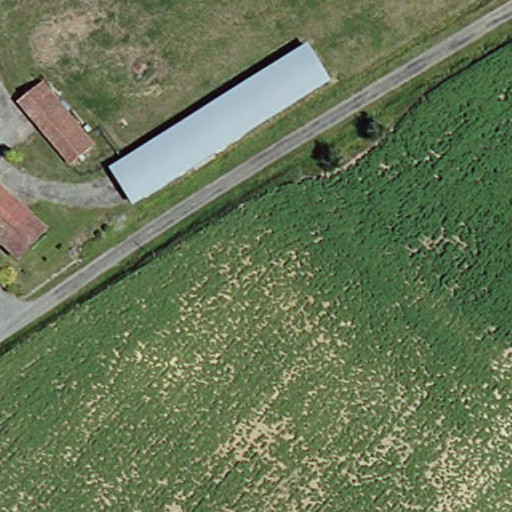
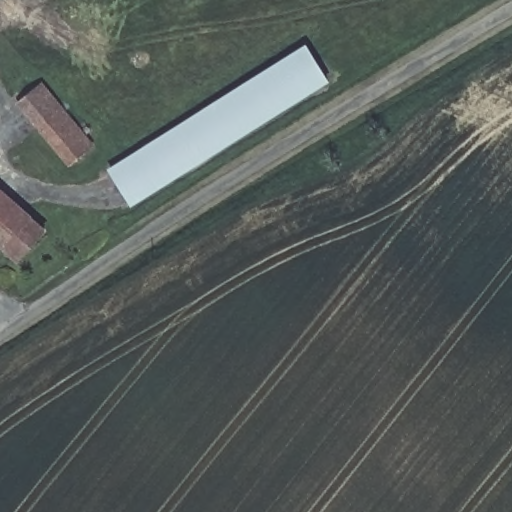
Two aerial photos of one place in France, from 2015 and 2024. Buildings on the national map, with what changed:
unchanged [(0,4),(0,0),(5,0),(0,4)]
unchanged [(339,82),(139,207),(118,170),(315,46),(339,82)]
unchanged [(98,142),(75,164),(23,100),(47,80),(98,142)]
unchanged [(20,258),(0,238),(0,182),(49,230),(20,258)]

